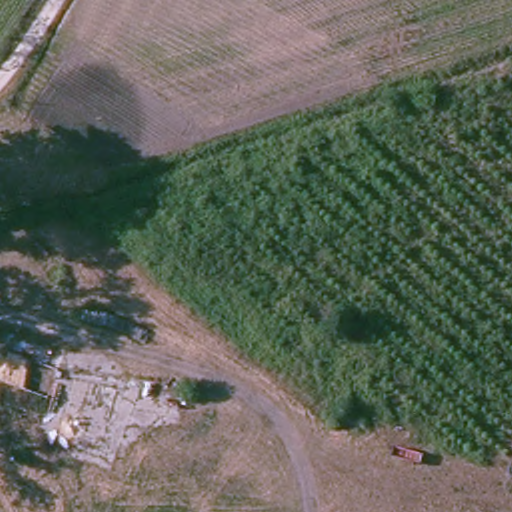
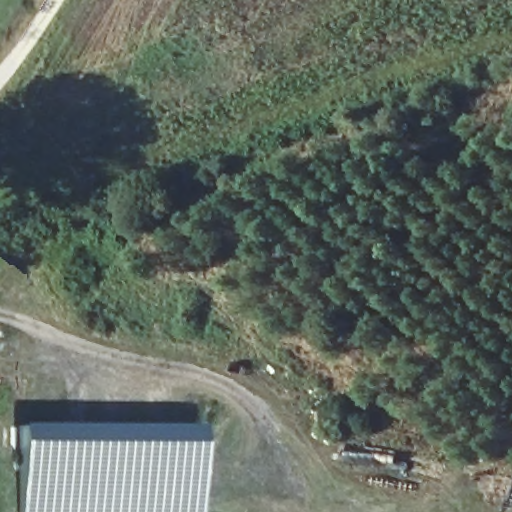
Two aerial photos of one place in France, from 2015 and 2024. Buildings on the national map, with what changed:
demolished [(13,354),(0,351),(0,346),(6,329),(74,354),(38,462),(0,449),(0,394),(13,354)]
new [(19,512),(19,425),(203,426),(201,512),(19,512)]

